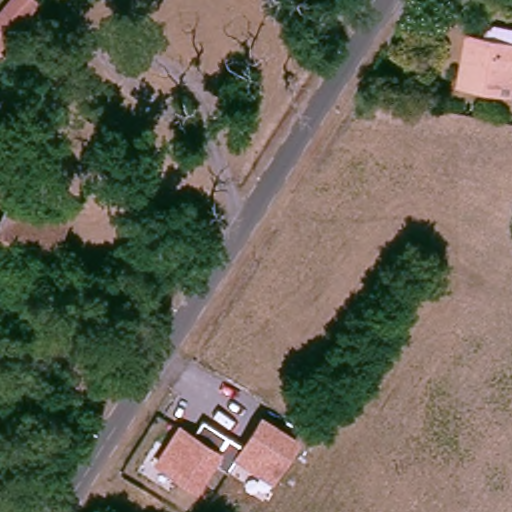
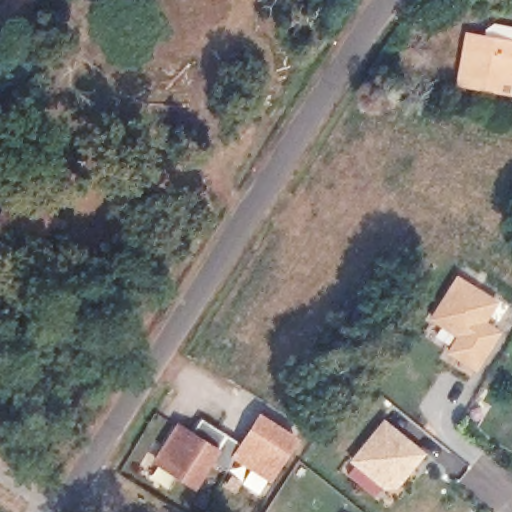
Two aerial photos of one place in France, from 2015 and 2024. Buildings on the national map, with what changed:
unchanged [(30,2),(0,42),(0,2),(1,0),(27,0),(30,2)]
unchanged [(459,88),(458,49),(477,48),(478,32),(510,32),(512,32),(512,88),(459,88)]
unchanged [(51,238),(0,213),(0,210),(8,194),(59,220),(51,238)]
unchanged [(38,268),(0,247),(0,213),(51,238),(38,268)]
new [(457,338),(430,321),(459,276),(498,301),(486,320),(503,332),(477,372),(448,354),(457,338)]
unchanged [(140,338),(131,358),(80,330),(90,311),(140,338)]
unchanged [(182,423),(194,431),(204,415),(245,441),(263,414),(298,437),(273,476),(239,453),(230,468),(213,458),(197,482),(159,457),(182,423)]
new [(397,489),(385,489),(351,462),(384,420),(426,454),(397,489)]

